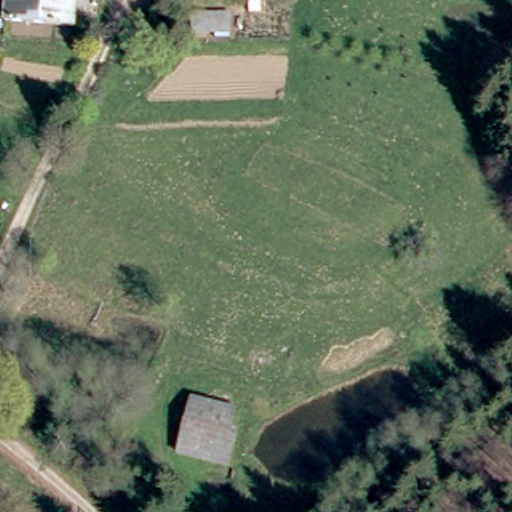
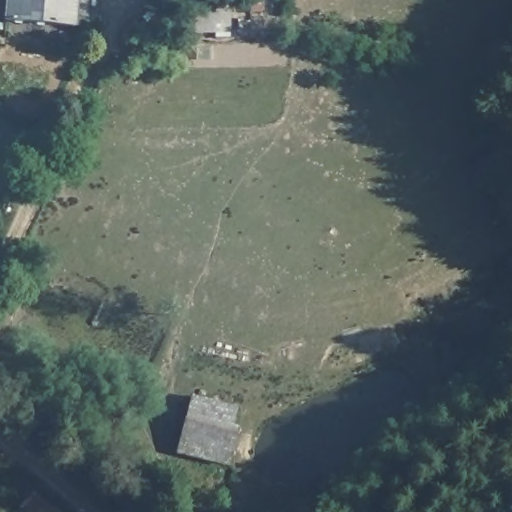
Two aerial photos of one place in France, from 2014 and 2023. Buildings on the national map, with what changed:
unchanged [(79,10),(71,9),(71,24),(4,20),(6,0),(79,0),(79,10)]
unchanged [(226,14),(227,33),(218,34),(192,36),(191,16),(217,14),(226,14)]
unchanged [(236,424),(228,458),(176,446),(190,388),(235,398),(229,423),(236,424)]

